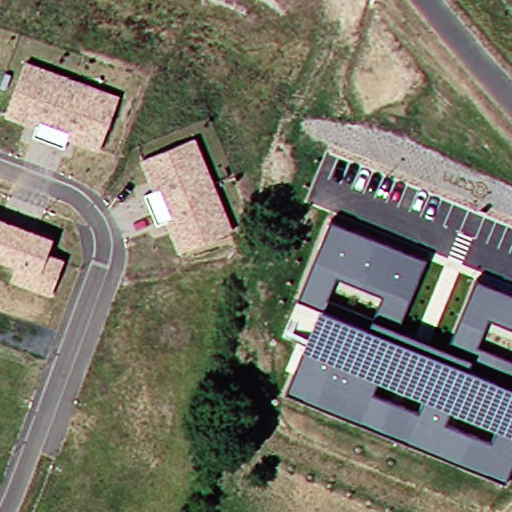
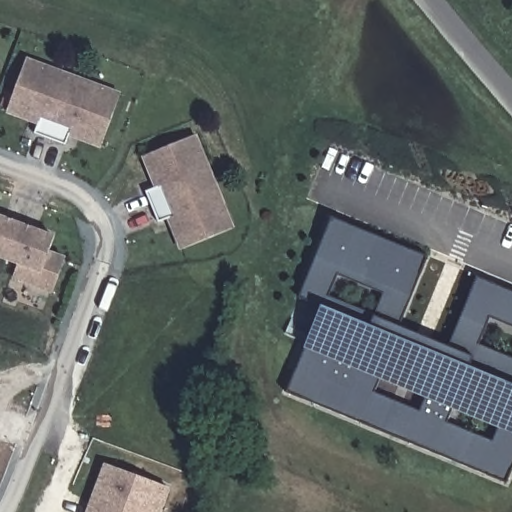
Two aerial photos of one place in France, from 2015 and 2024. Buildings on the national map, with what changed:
unchanged [(67,144),(36,132),(40,122),(31,119),(9,110),(28,58),(54,67),(96,83),(122,92),(102,145),(80,137),(71,134),(67,144)]
unchanged [(147,190),(157,186),(154,177),(145,155),(197,134),(207,159),(224,201),(235,226),(182,248),(174,225),(170,217),(160,221),(147,190)]
unchanged [(53,292),(13,277),(18,263),(0,256),(0,216),(56,236),(52,243),(50,251),(66,257),(53,292)]
unchanged [(426,259),(396,327),(447,348),(477,279),(512,294),(512,327),(489,317),(478,345),(512,360),(512,465),(506,482),(287,391),(305,349),(321,305),(299,297),(332,219),(426,259)]
new [(105,467),(114,470),(167,488),(158,512),(89,512),(105,467)]

